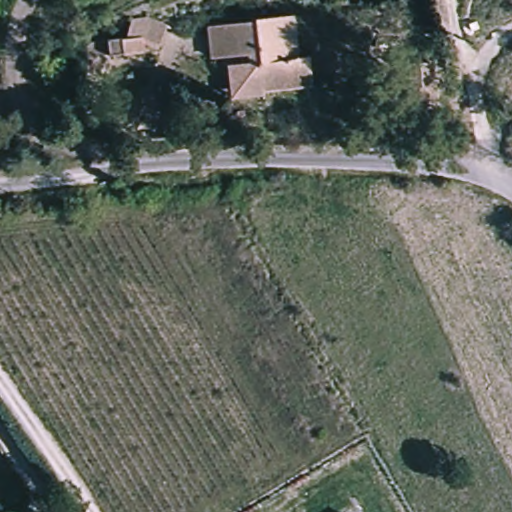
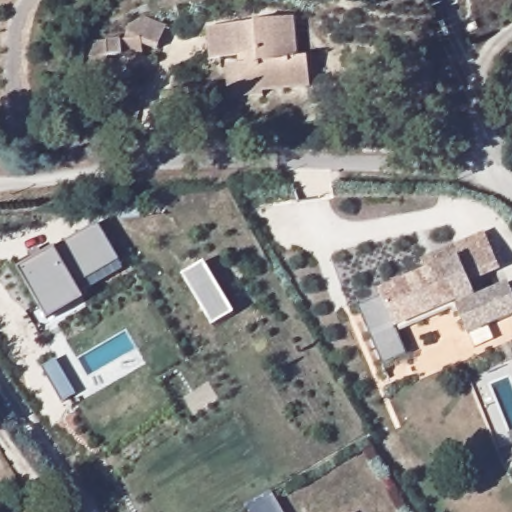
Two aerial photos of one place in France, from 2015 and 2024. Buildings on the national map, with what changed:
unchanged [(230,93),(227,61),(240,60),(239,51),(214,54),(210,23),(256,17),(256,15),(294,10),(299,53),(308,52),(311,81),(263,86),(263,89),(230,93)]
unchanged [(87,37),(126,35),(133,14),(148,14),(168,23),(158,44),(143,37),(144,46),(109,50),(110,64),(83,65),(87,37)]
new [(73,281),(81,295),(47,316),(16,265),(52,244),(94,219),(114,255),(73,281)]
new [(509,284),(512,291),(512,319),(468,336),(456,305),(395,329),(406,354),(383,365),(357,307),(383,297),(380,290),(454,259),(449,248),(485,233),(509,284)]
new [(61,401),(53,387),(40,365),(54,357),(67,378),(75,392),(61,401)]
new [(282,512),(248,512),(245,507),(270,492),(282,512)]

